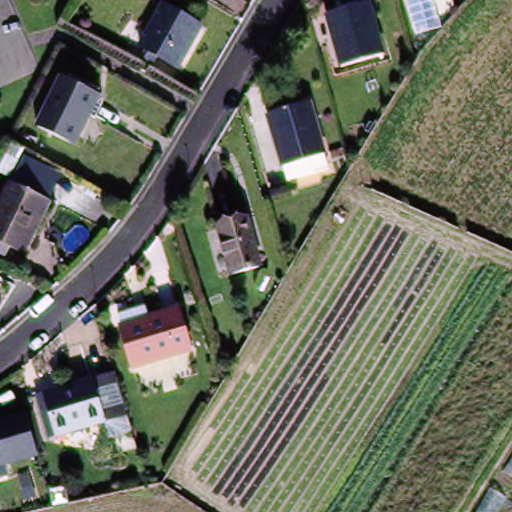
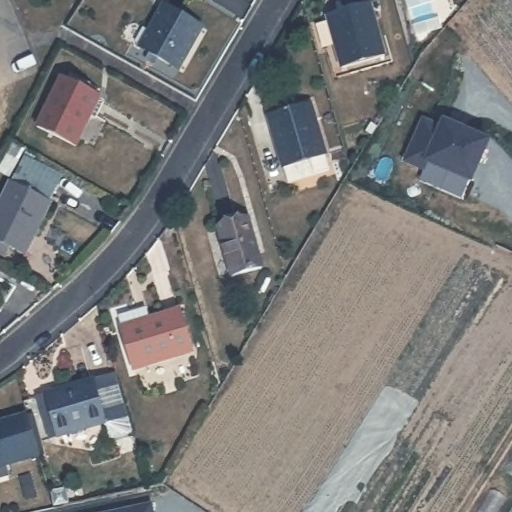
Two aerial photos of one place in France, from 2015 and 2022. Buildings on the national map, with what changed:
unchanged [(149,54),(140,49),(164,7),(202,30),(177,71),(157,60),(153,67),(145,61),(149,54)]
unchanged [(346,72),(331,20),(372,7),(386,60),(346,72)]
unchanged [(31,128),(57,80),(96,100),(70,149),(31,128)]
unchanged [(285,171),(263,102),(305,90),(325,159),(285,171)]
new [(422,120),(440,127),(442,121),(487,141),(470,181),(426,161),(422,169),(403,160),(422,120)]
unchanged [(5,247),(0,245),(0,238),(0,199),(11,178),(17,163),(56,182),(69,190),(62,204),(49,197),(22,249),(7,242),(5,247)]
unchanged [(232,278),(219,230),(249,222),(262,270),(232,278)]
unchanged [(193,356),(136,372),(124,330),(121,319),(148,311),(151,322),(181,314),(193,356)]
unchanged [(122,440),(110,444),(105,443),(100,428),(54,441),(46,443),(40,422),(34,401),(33,398),(42,395),(88,382),(111,376),(112,377),(123,414),(125,421),(122,422),(126,437),(122,440)]
unchanged [(0,480),(0,422),(22,416),(29,415),(34,434),(40,456),(35,457),(2,467),(5,478),(0,480)]
unchanged [(477,512),(504,465),(512,453),(512,512),(477,512)]
new [(147,512),(108,512),(146,504),(147,512)]

